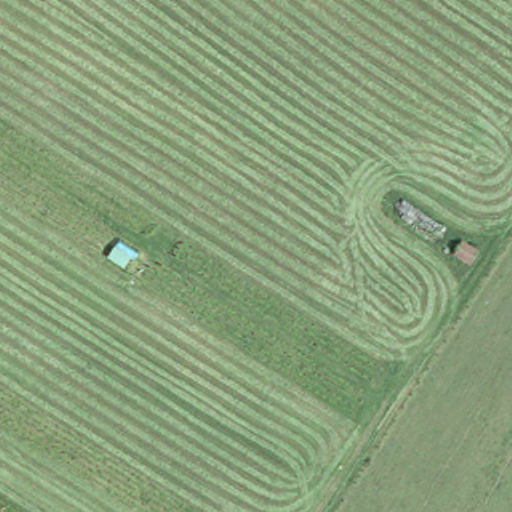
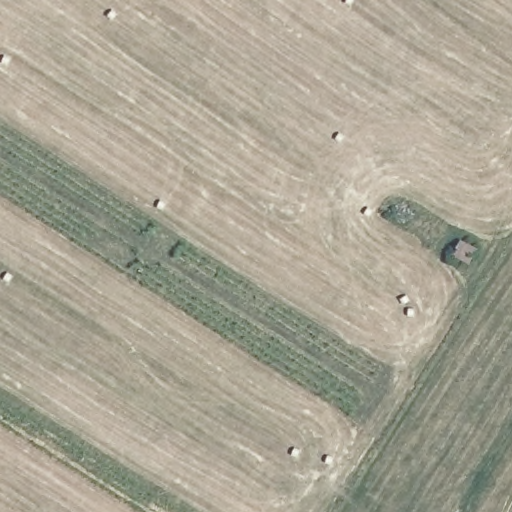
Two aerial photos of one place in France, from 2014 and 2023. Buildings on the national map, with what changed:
unchanged [(467,244),(484,256),(471,270),(456,258),(467,244)]

